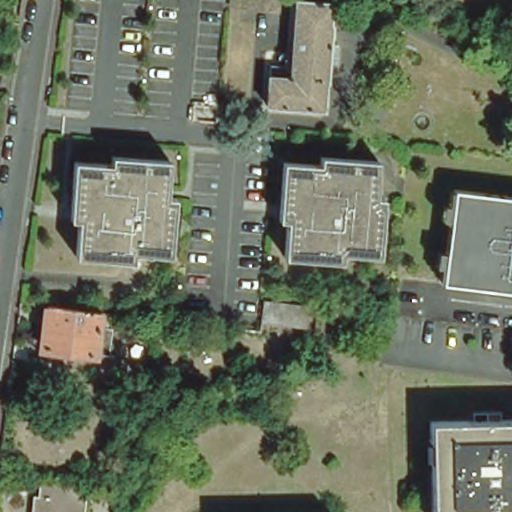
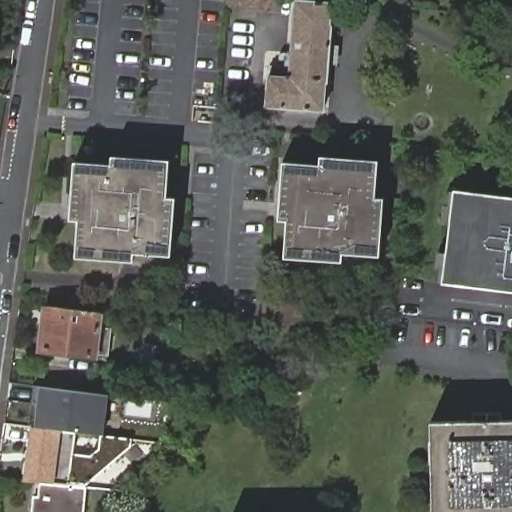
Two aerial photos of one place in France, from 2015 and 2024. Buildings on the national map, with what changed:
unchanged [(232,4),(232,0),(278,0),(277,10),(232,4)]
unchanged [(319,112),(268,106),(272,66),(284,67),(286,77),(287,79),(296,0),(317,0),(317,2),(331,4),(328,27),(331,28),(325,83),(322,83),(319,112)]
unchanged [(320,161),(321,155),(378,160),(378,166),(376,196),(383,196),(380,255),(344,253),(343,262),(284,257),(287,220),(278,220),(283,161),(291,162),(320,165),(320,161)]
unchanged [(72,205),(76,162),(111,166),(112,163),(112,156),(168,160),(167,167),(166,197),(173,197),(169,255),(132,252),(131,263),(75,258),(79,220),(71,220),(72,205)]
unchanged [(442,282),(453,189),(512,196),(512,291),(442,282)]
unchanged [(305,325),(261,320),(263,299),(277,300),(307,305),(305,325)]
unchanged [(92,332),(106,334),(103,362),(89,361),(89,358),(37,353),(42,311),(69,315),(93,317),(92,332)]
new [(31,425),(35,426),(40,386),(110,394),(105,435),(132,438),(132,446),(82,487),(77,487),(53,485),(49,485),(45,484),(39,483),(24,481),(31,425)]
unchanged [(512,420),(512,512),(431,512),(429,422),(512,420)]
unchanged [(83,512),(30,512),(31,497),(38,497),(39,483),(45,484),(49,485),(77,487),(86,488),(83,512)]

